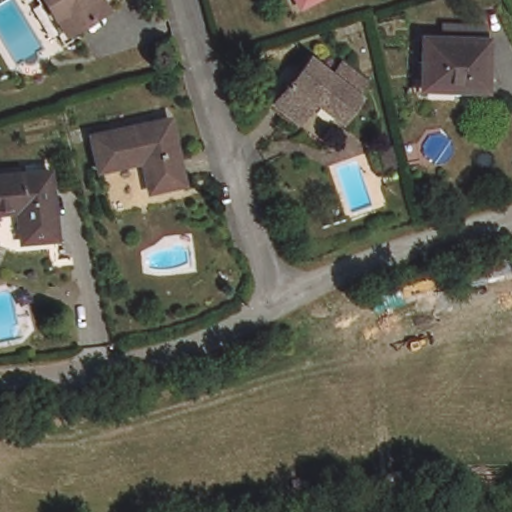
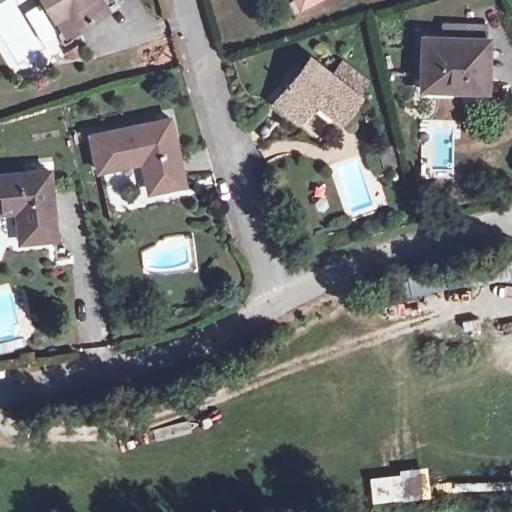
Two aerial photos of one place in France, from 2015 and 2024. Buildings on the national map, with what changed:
unchanged [(61,35),(42,0),(113,0),(116,5),(61,35)]
unchanged [(458,85),(458,87),(430,88),(428,44),(440,44),(440,37),(440,30),(462,29),(482,29),(482,43),(483,84),(458,85)]
unchanged [(307,63),(330,82),(340,69),(363,88),(352,101),(353,103),(340,120),(315,99),(295,124),(271,106),(307,63)]
unchanged [(147,158),(104,168),(96,135),(176,116),(190,180),(160,187),(154,189),(147,158)]
unchanged [(16,205),(0,207),(0,171),(55,166),(62,231),(34,233),(20,235),(16,205)]
new [(430,493),(371,499),(370,475),(400,473),(400,467),(428,466),(430,493)]

